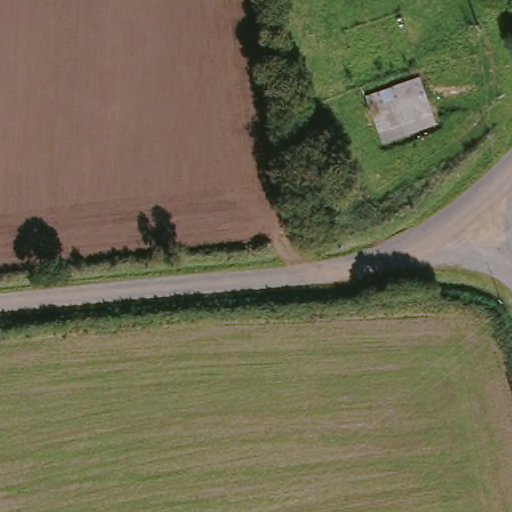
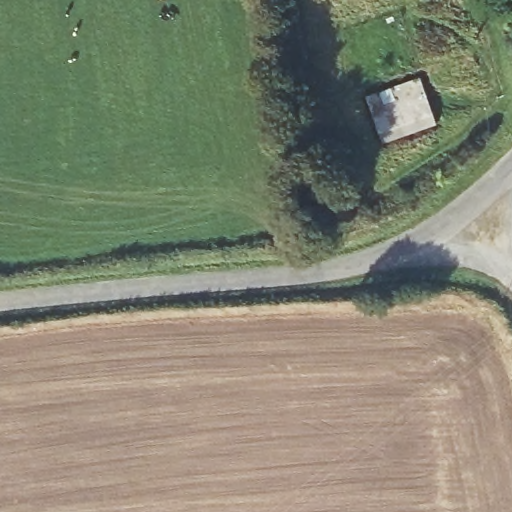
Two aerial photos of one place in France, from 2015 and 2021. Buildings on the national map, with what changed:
unchanged [(415,84),(434,130),(375,154),(359,103),(415,84)]

